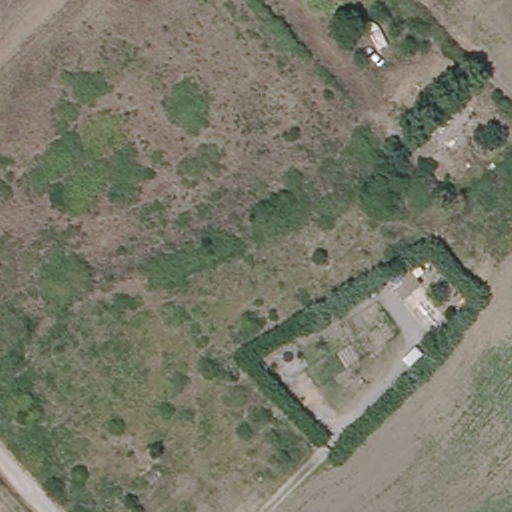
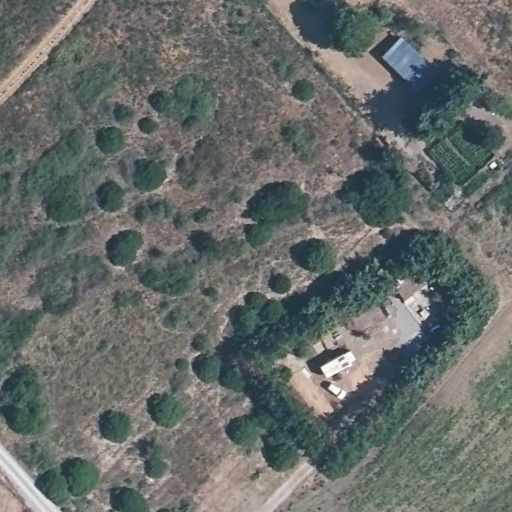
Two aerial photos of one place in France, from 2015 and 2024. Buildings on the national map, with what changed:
new [(415,89),(380,57),(400,38),(434,69),(415,89)]
unchanged [(400,270),(410,284),(423,272),(449,312),(423,334),(387,283),(400,270)]

